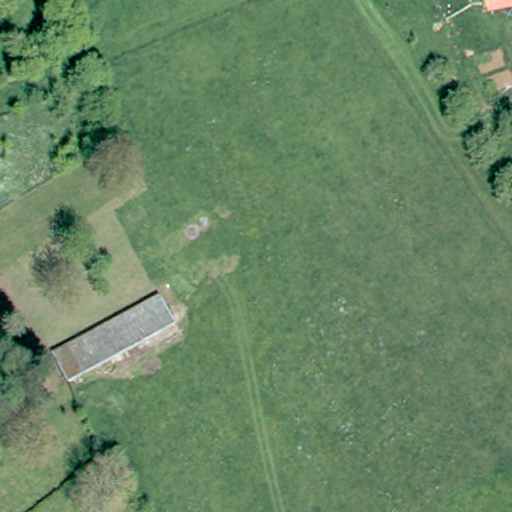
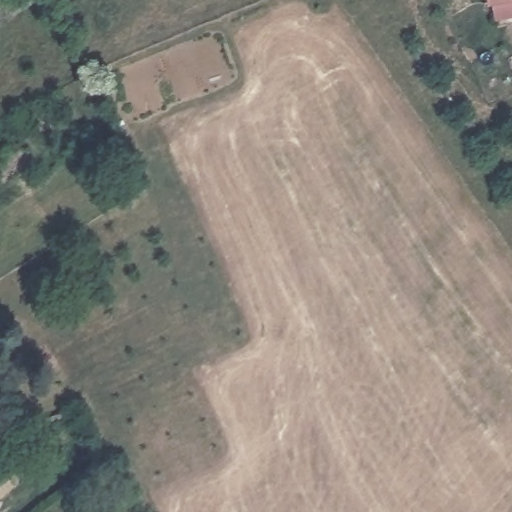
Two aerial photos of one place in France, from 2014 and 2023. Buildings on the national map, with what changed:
unchanged [(494,23),(492,5),(488,5),(488,0),(512,0),(512,19),(494,23)]
demolished [(174,328),(84,376),(68,385),(53,357),(69,349),(160,301),(174,328)]

